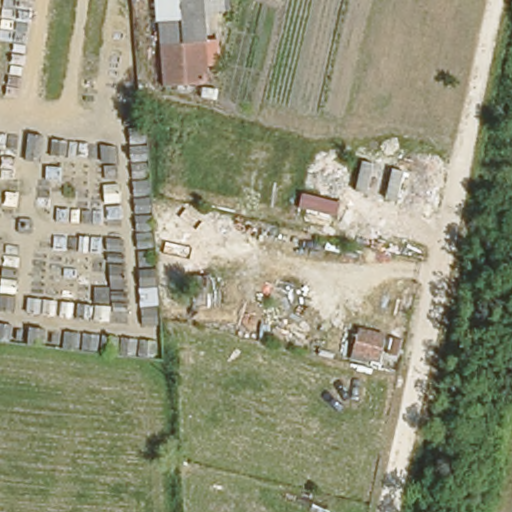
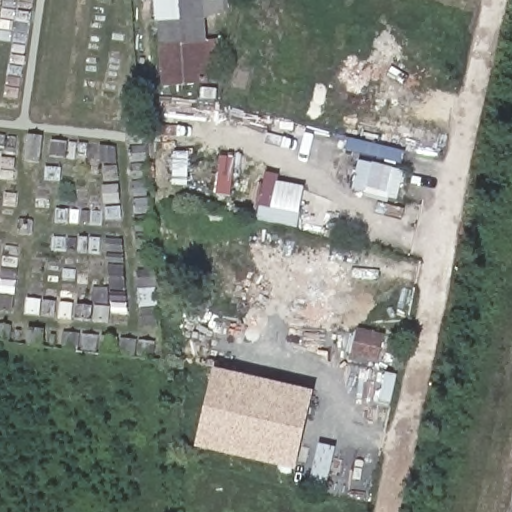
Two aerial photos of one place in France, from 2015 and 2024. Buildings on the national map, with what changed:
unchanged [(212,37),(213,65),(205,67),(205,83),(161,88),(153,0),(200,0),(203,37),(212,37)]
new [(396,203),(351,193),(358,160),(403,170),(396,203)]
new [(297,228),(255,220),(264,172),(278,175),(277,181),(303,186),(300,201),(297,228)]
new [(136,270),(155,268),(159,308),(140,309),(137,288),(136,270)]
unchanged [(379,365),(351,359),(358,327),(385,334),(379,365)]
new [(195,448),(213,368),(313,391),(294,471),(195,448)]

